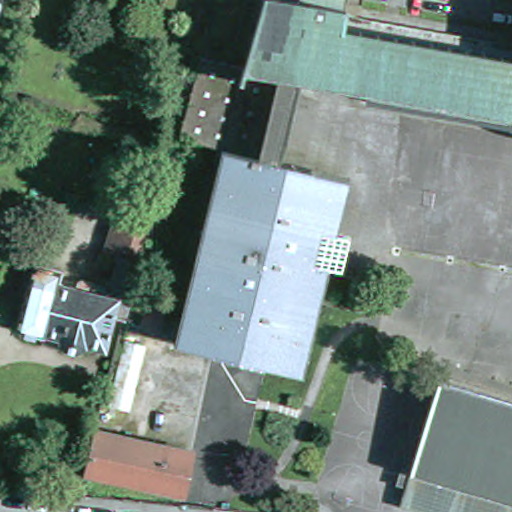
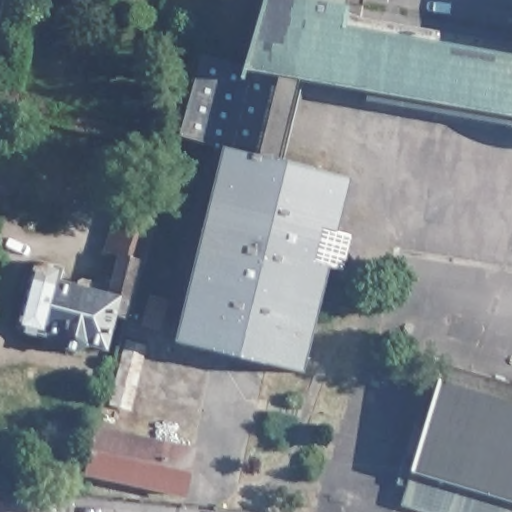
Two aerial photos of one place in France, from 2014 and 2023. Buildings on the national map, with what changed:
unchanged [(248,80),(245,82),(241,81),(246,65),(266,0),(344,0),(342,10),(348,10),(345,30),(512,59),(512,131),(369,105),(370,94),(300,82),(281,79),(265,75),(262,80),(248,80)]
unchanged [(246,65),(241,81),(221,150),(177,139),(200,58),(232,63),(246,65)]
unchanged [(281,79),(300,82),(277,164),(258,159),(281,79)]
unchanged [(333,236),(350,240),(342,272),(325,268),(300,375),(176,343),(224,150),(258,159),(277,164),(346,181),(333,236)]
unchanged [(139,271),(126,326),(117,325),(110,355),(90,350),(89,355),(82,358),(70,355),(65,349),(66,345),(50,340),(48,342),(22,335),(31,299),(27,297),(33,271),(37,272),(38,268),(66,275),(65,289),(80,292),(81,288),(89,286),(113,292),(119,267),(112,265),(123,222),(155,231),(144,272),(139,271)]
unchanged [(142,330),(140,343),(127,340),(130,328),(142,330)]
unchanged [(145,353),(132,414),(113,410),(128,348),(145,353)]
unchanged [(410,487),(398,484),(406,456),(417,459),(440,380),(441,383),(512,404),(512,512),(432,512),(405,504),(410,487)]
unchanged [(196,450),(188,493),(90,474),(100,431),(196,450)]

